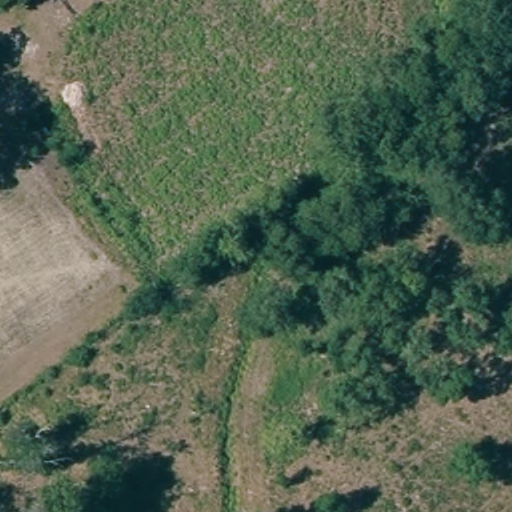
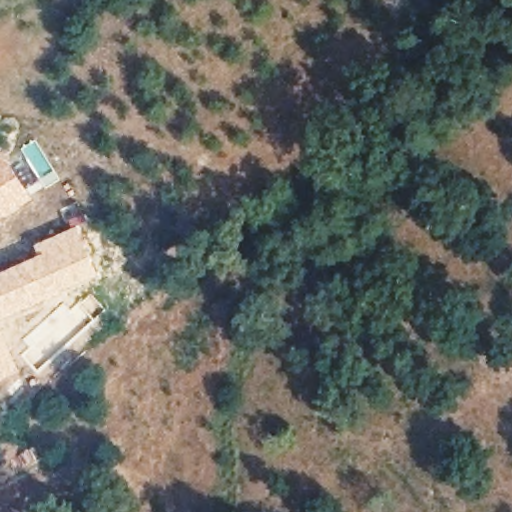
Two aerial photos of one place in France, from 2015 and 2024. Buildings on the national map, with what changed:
new [(4,154),(32,200),(0,218),(0,156),(4,154)]
new [(84,220),(77,224),(76,221),(67,224),(61,209),(77,202),(84,220)]
new [(34,246),(77,224),(100,277),(32,311),(1,323),(0,324),(0,272),(38,256),(34,246)]
new [(1,323),(21,372),(0,382),(0,324),(1,323)]

